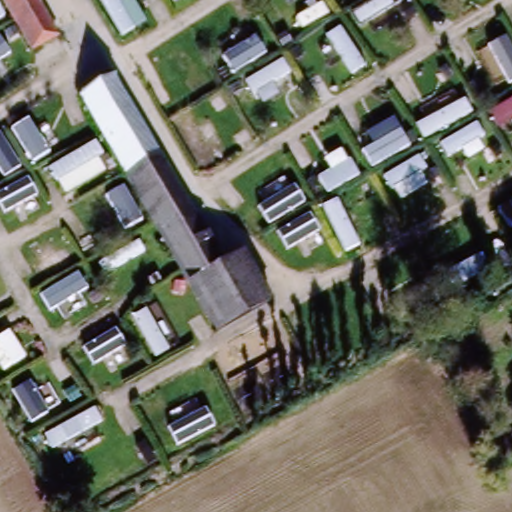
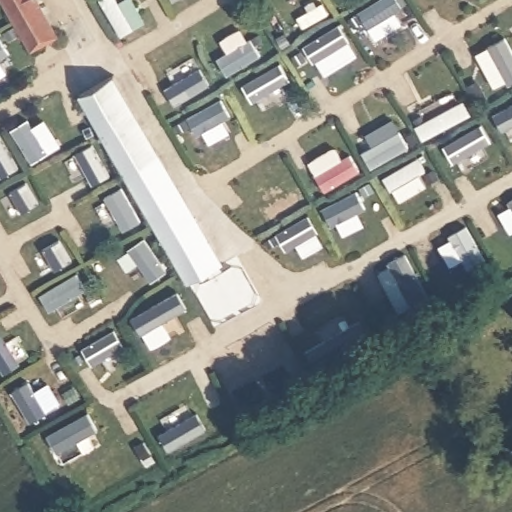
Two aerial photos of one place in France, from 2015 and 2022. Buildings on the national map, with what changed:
unchanged [(55,34),(28,47),(3,0),(37,0),(55,34)]
unchanged [(74,93),(75,90),(110,73),(215,263),(179,282),(74,93)]
unchanged [(238,251),(265,301),(207,333),(179,282),(215,263),(238,251)]

